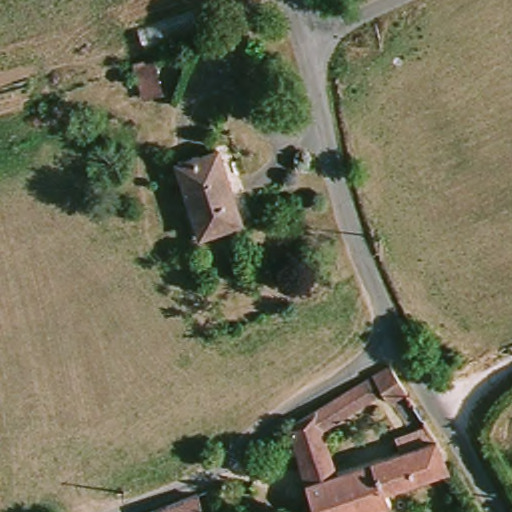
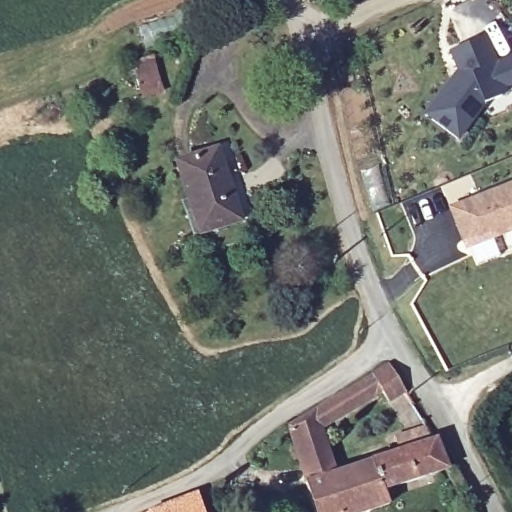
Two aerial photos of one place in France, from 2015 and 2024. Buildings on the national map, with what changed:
new [(427,115),(452,82),(457,86),(462,79),(450,51),(485,37),(497,67),(512,60),(512,82),(505,85),(502,96),(482,105),(459,138),(427,115)]
unchanged [(135,64),(151,59),(160,91),(143,96),(135,64)]
unchanged [(199,235),(176,162),(217,149),(240,220),(199,235)]
new [(512,182),(512,232),(463,251),(445,208),(512,182)]
unchanged [(286,432),(388,370),(405,397),(390,407),(383,396),(321,435),(291,445),(286,432)]
unchanged [(395,443),(424,433),(428,447),(435,445),(447,475),(382,495),(387,510),(379,512),(312,512),(304,487),(335,477),(399,457),(395,443)]
unchanged [(321,435),(335,477),(304,487),(291,445),(321,435)]
unchanged [(162,512),(195,498),(200,512),(162,512)]

